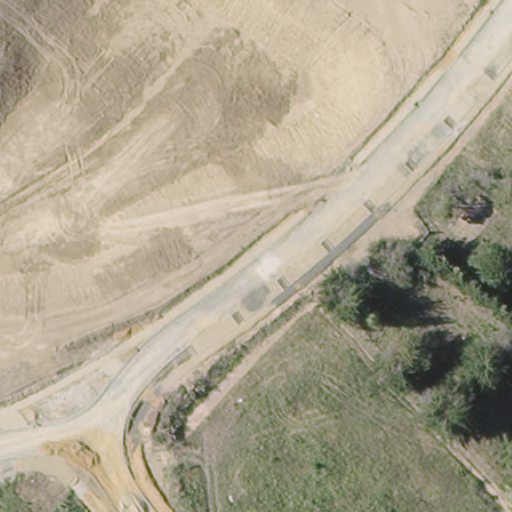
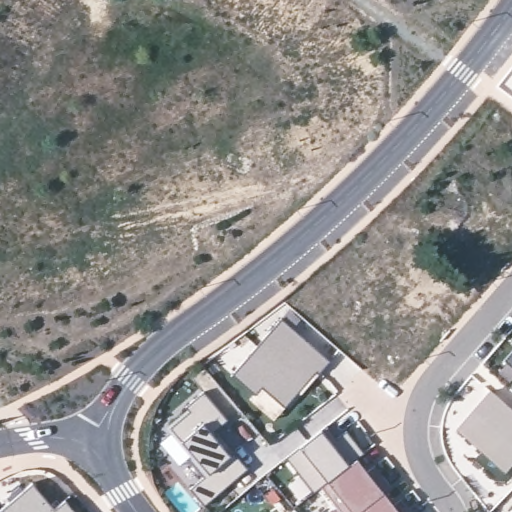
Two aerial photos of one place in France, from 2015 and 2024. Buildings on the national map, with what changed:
demolished [(474,246),(453,228),(481,194),(503,211),(474,246)]
new [(232,376),(279,320),(330,363),(318,376),(301,395),(298,392),(284,409),(274,421),(251,401),(255,396),(232,376)]
new [(503,362),(512,351),(512,370),(503,362)]
new [(457,430),(489,392),(512,413),(512,460),(503,470),(488,457),(457,430)]
new [(206,506),(192,490),(208,475),(181,444),(167,428),(205,396),(227,421),(216,431),(220,436),(217,439),(232,457),(235,454),(248,469),(206,506)]
new [(322,429),(333,443),(347,432),(364,453),(315,492),(286,457),(322,429)]
new [(321,487),(326,484),(355,461),(366,474),(374,467),(389,486),(382,493),(394,507),(401,500),(410,512),(341,512),(321,487)]
new [(33,484),(55,509),(66,500),(75,512),(0,512),(0,511),(33,484)]
new [(512,509),(512,512),(509,512),(512,509)]

